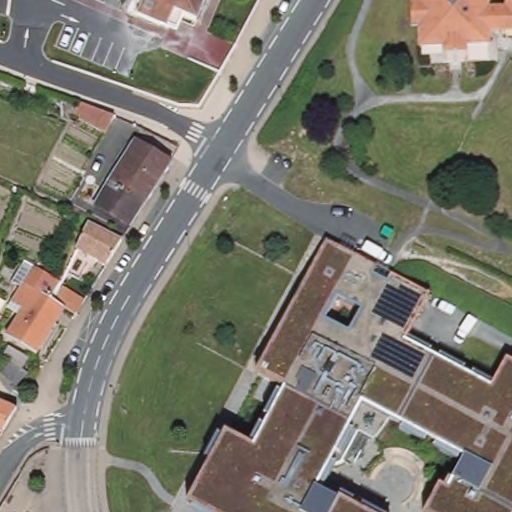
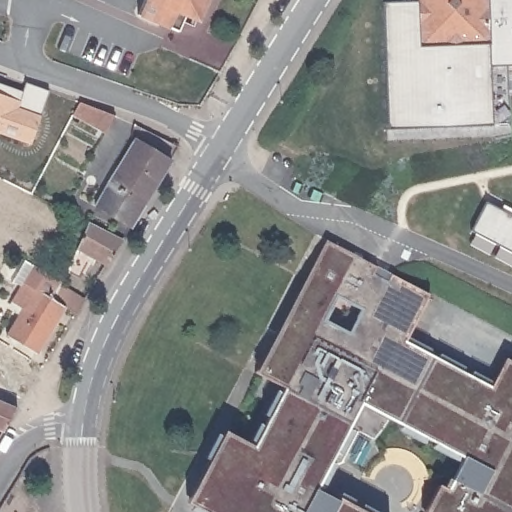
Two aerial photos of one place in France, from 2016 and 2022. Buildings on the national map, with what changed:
unchanged [(170,3),(162,20),(140,9),(144,0),(205,0),(199,16),(170,3)]
unchanged [(420,6),(420,0),(489,0),(489,12),(501,12),(506,12),(508,2),(512,2),(512,33),(495,33),(491,33),(491,46),(474,46),(468,46),(467,46),(467,53),(444,54),(444,49),(422,49),(421,28),(413,28),(412,17),(412,6),(420,6)]
new [(506,12),(501,12),(489,12),(489,0),(512,0),(512,2),(508,2),(506,12)]
new [(412,6),(412,17),(413,28),(421,28),(422,49),(444,49),(444,54),(467,53),(467,46),(468,46),(474,46),(491,46),(491,33),(495,33),(512,33),(512,63),(490,64),(492,123),(388,126),(383,3),(420,1),(420,6),(412,6)]
unchanged [(236,42),(221,69),(162,40),(175,11),(236,42)]
demolished [(150,87),(121,74),(129,58),(158,71),(150,87)]
new [(22,89),(25,82),(50,91),(30,144),(0,134),(0,81),(22,89)]
unchanged [(112,114),(101,131),(72,111),(78,98),(112,114)]
unchanged [(131,228),(98,206),(139,139),(173,161),(131,228)]
unchanged [(487,202),(512,215),(512,252),(472,231),(487,202)]
unchanged [(124,239),(107,265),(80,251),(78,249),(90,221),(124,239)]
unchanged [(188,500),(226,428),(255,444),(285,385),(257,370),(327,238),(377,265),(374,272),(388,279),(392,272),(431,293),(406,340),(491,385),(507,356),(512,359),(512,512),(425,512),(440,484),(447,488),(465,456),(390,417),(385,427),(375,437),(360,429),(343,459),(337,463),(332,465),(326,467),(314,491),(335,502),(337,499),(361,512),(211,512),(188,500)]
unchanged [(39,353),(10,335),(26,309),(15,301),(24,287),(14,281),(17,277),(28,259),(65,282),(60,292),(66,295),(64,300),(59,297),(57,300),(68,307),(39,353)]
unchanged [(20,393),(16,390),(0,369),(7,359),(32,374),(20,393)]
unchanged [(1,400),(19,406),(4,432),(0,430),(0,400),(1,400)]
unchanged [(211,512),(190,512),(184,508),(188,500),(211,512)]

